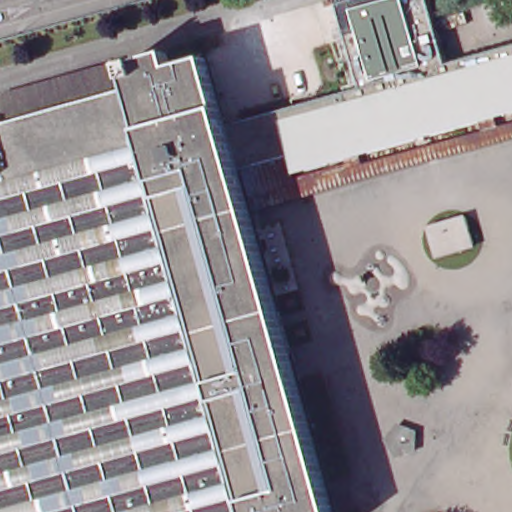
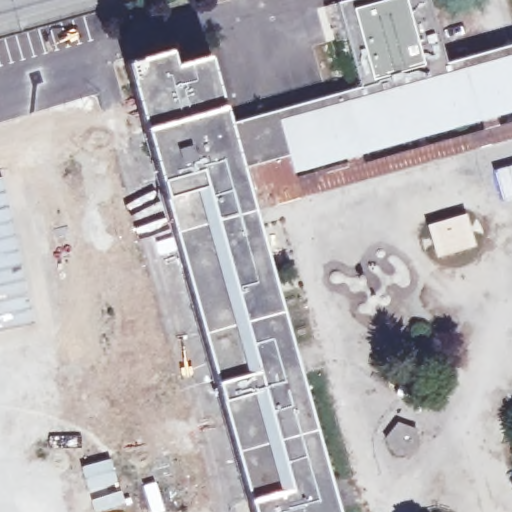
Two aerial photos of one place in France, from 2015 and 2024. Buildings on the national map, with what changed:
unchanged [(366,92),(343,7),(368,0),(433,0),(452,67),(512,49),(512,117),(500,121),(485,125),(366,157),(351,162),(299,177),(295,159),(244,173),(233,129),(366,92)]
unchanged [(178,73),(213,63),(233,129),(244,173),(256,215),(271,269),(295,352),(303,381),(333,487),(340,512),(255,512),(253,506),(136,92),(131,70),(173,58),(178,73)]
demolished [(99,102),(129,94),(136,92),(253,506),(240,509),(241,512),(239,512),(0,512),(0,130),(12,127),(99,102)]
unchanged [(256,215),(244,173),(295,159),(299,177),(301,182),(352,166),(351,162),(366,157),(369,169),(488,135),(485,125),(500,121),(503,131),(512,128),(512,144),(256,215)]
new [(33,321),(0,328),(0,176),(3,176),(33,321)]
new [(464,214),(473,243),(435,254),(427,224),(464,214)]

